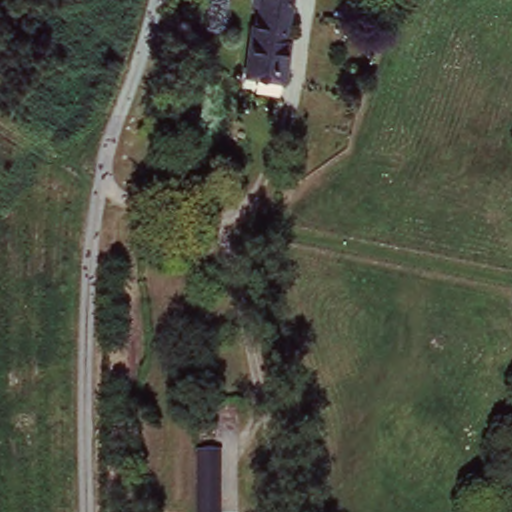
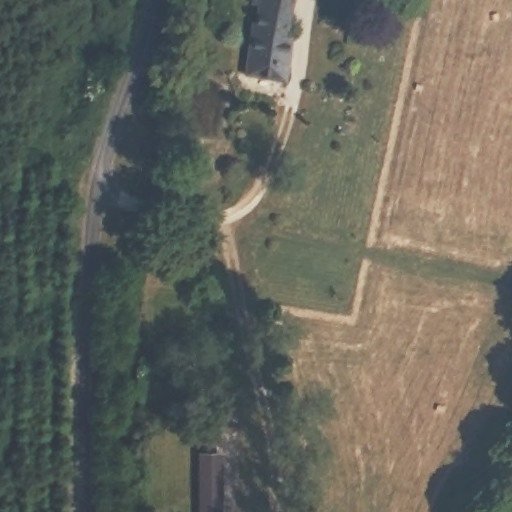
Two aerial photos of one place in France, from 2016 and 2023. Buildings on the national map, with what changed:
unchanged [(290,35),(281,79),(242,70),(251,21),(255,20),(259,0),(291,0),(285,32),(290,35)]
unchanged [(220,438),(221,512),(200,512),(199,438),(220,438)]

